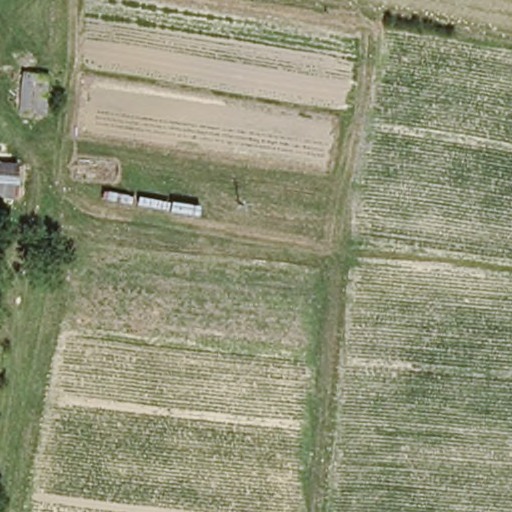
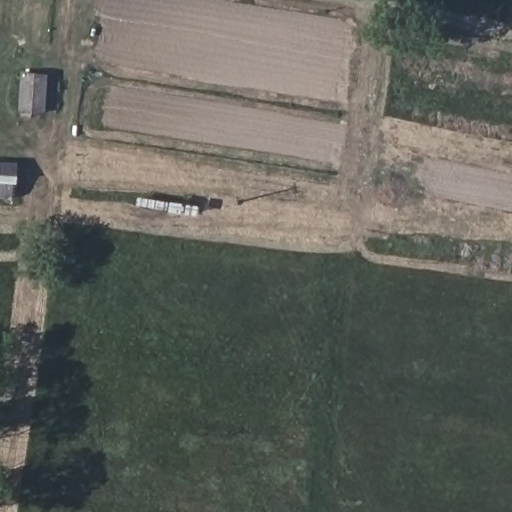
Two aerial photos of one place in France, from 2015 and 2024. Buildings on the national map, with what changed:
unchanged [(50,77),(49,112),(22,111),(25,76),(50,77)]
unchanged [(11,196),(0,196),(0,158),(13,158),(11,196)]

